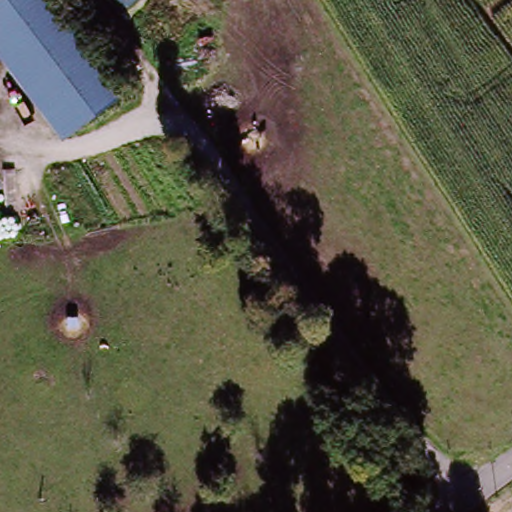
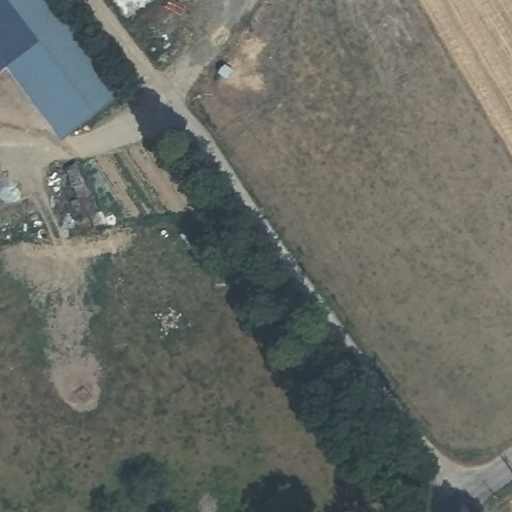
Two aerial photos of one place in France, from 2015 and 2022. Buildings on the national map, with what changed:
unchanged [(65,139),(0,56),(0,0),(53,0),(126,89),(65,139)]

